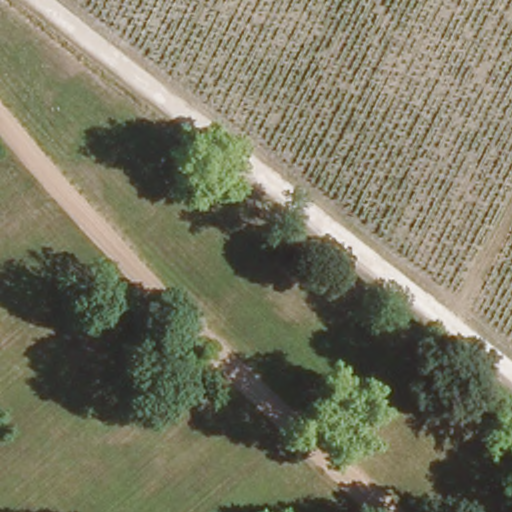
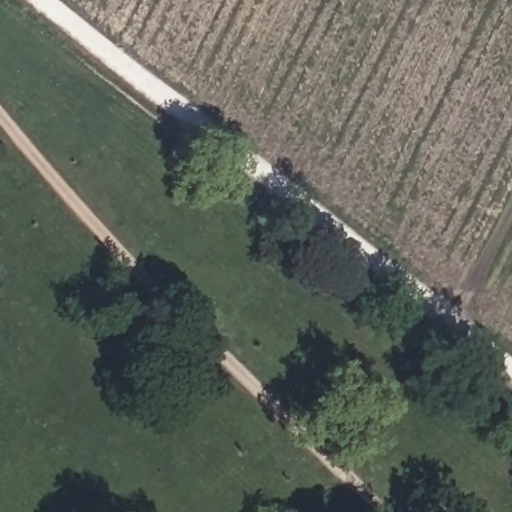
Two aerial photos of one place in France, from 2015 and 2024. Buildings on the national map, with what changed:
[]

